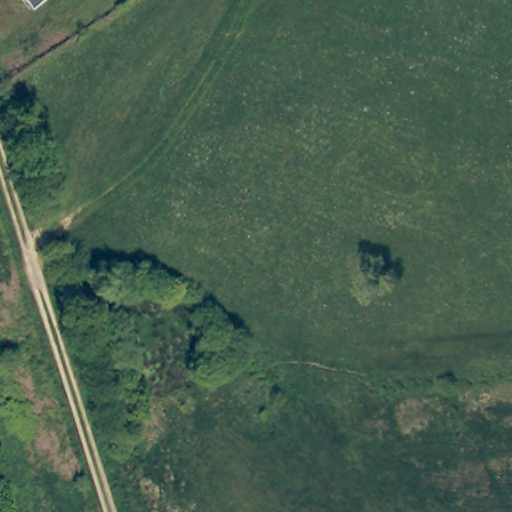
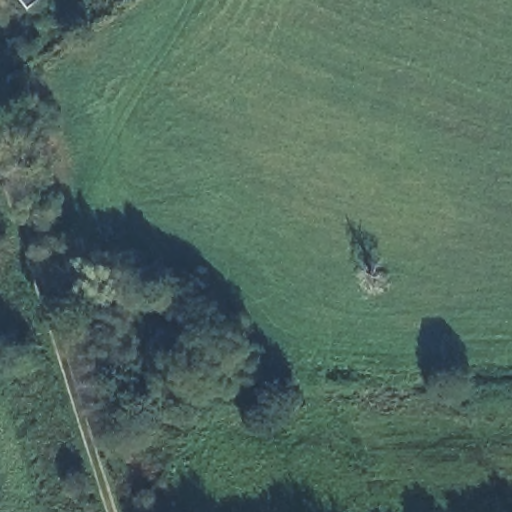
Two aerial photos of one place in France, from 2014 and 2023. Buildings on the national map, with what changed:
[]

